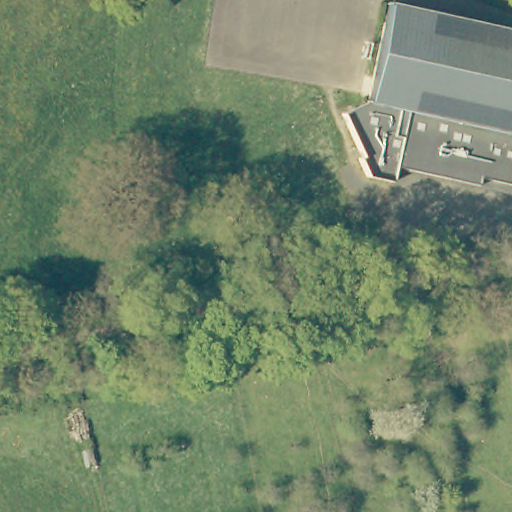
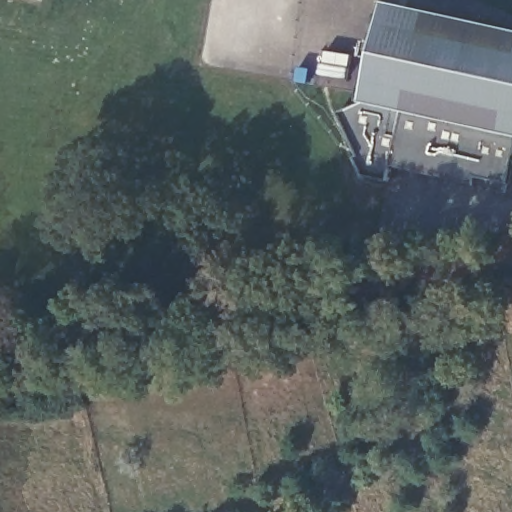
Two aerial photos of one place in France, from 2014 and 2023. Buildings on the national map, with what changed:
unchanged [(508,180),(477,172),(475,180),(393,159),(390,174),(365,168),(357,150),(361,148),(342,104),(367,94),(391,0),(393,0),(512,30),(512,167),(508,180)]

